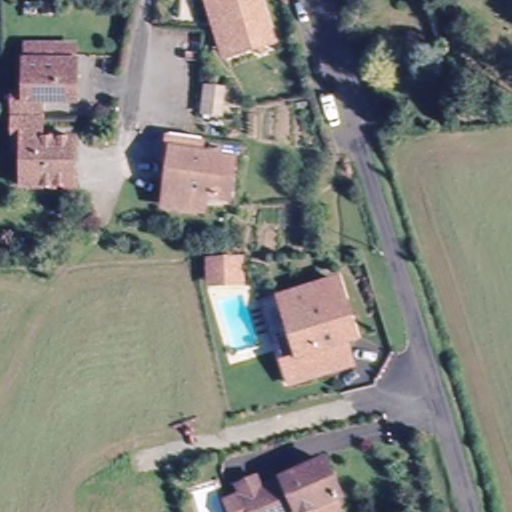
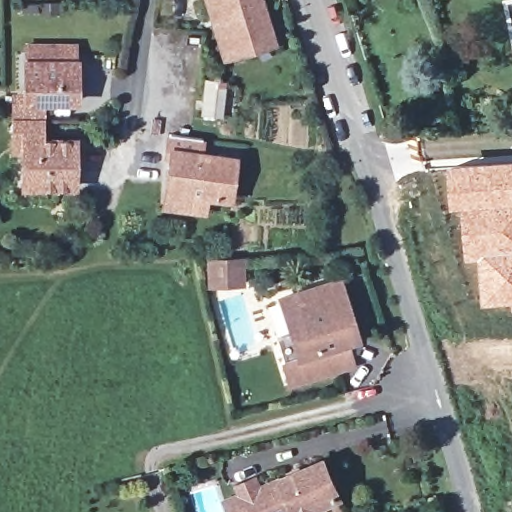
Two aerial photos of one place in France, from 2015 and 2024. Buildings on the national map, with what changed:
unchanged [(272,39),(231,52),(220,16),(213,18),(208,0),(260,0),(272,39)]
unchanged [(27,105),(27,66),(27,51),(77,50),(77,65),(78,105),(45,105),(45,125),(18,125),(18,105),(27,105)]
unchanged [(44,137),(79,139),(77,186),(29,186),(28,160),(18,160),(18,146),(18,125),(45,125),(44,137)]
unchanged [(167,214),(168,199),(170,165),(166,165),(167,142),(188,144),(199,145),(198,160),(224,163),(231,164),(230,180),(229,203),(204,201),(203,215),(167,214)]
new [(512,301),(483,301),(478,254),(467,255),(461,205),(454,205),(450,162),(512,157),(512,301)]
unchanged [(354,339),(344,341),(351,364),(289,382),(276,337),(290,332),(280,297),(336,280),(354,339)]
unchanged [(318,512),(317,510),(311,512),(239,512),(234,500),(251,493),(247,484),(263,477),(267,487),(331,460),(347,496),(346,497),(350,506),(337,512),(318,512)]

